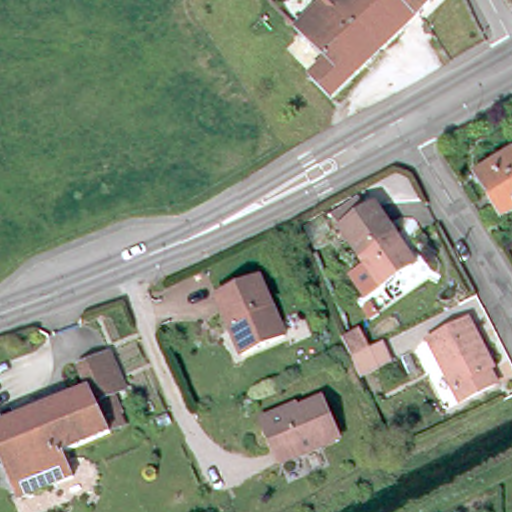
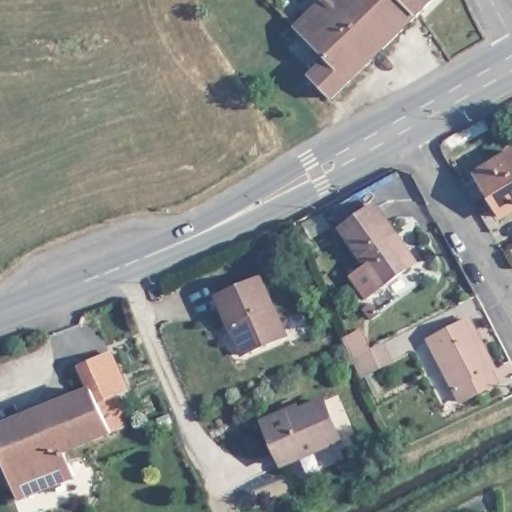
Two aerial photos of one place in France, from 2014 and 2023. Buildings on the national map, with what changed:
unchanged [(417,16),(331,99),(310,78),(327,61),(296,29),(325,0),(402,0),(417,16)]
unchanged [(417,16),(402,0),(433,0),(417,16)]
unchanged [(481,186),(492,179),(488,172),(498,166),(512,157),(512,218),(503,223),(481,186)]
unchanged [(382,287),(341,229),(376,206),(394,233),(416,263),(412,265),(382,287)]
unchanged [(248,361),(239,340),(243,338),(239,329),(236,331),(222,301),(264,283),(291,343),(248,361)]
unchanged [(462,403),(429,339),(468,320),(477,337),(494,369),(490,371),(497,384),(462,403)]
unchanged [(347,339),(361,332),(369,350),(356,357),(347,339)]
unchanged [(356,360),(385,346),(393,362),(364,377),(356,360)]
unchanged [(18,495),(0,451),(0,424),(93,386),(80,363),(111,350),(126,384),(113,390),(122,409),(118,411),(123,423),(64,448),(74,472),(41,486),(18,495)]
unchanged [(340,440),(282,465),(265,427),(263,422),(299,407),(301,411),(324,401),(340,440)]

